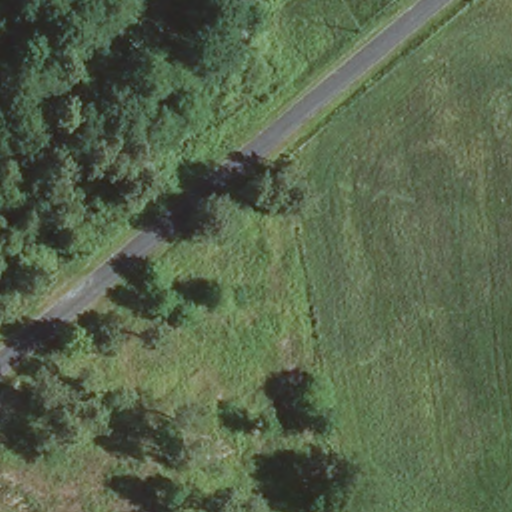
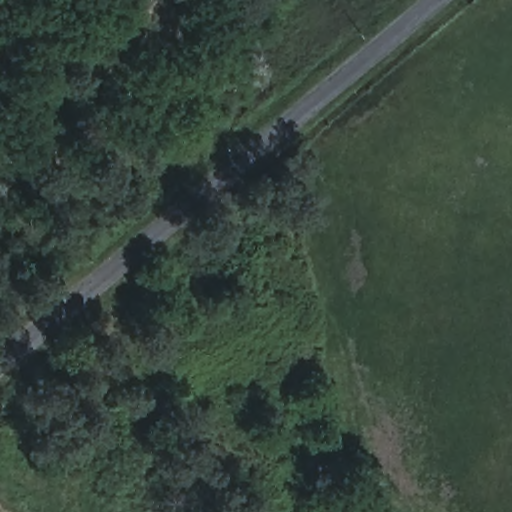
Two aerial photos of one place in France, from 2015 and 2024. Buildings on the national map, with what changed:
[]

